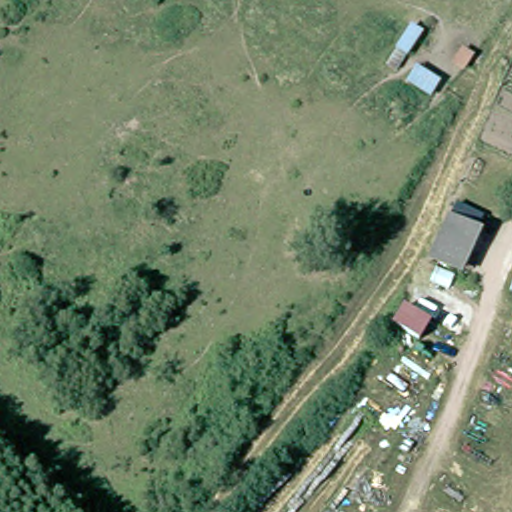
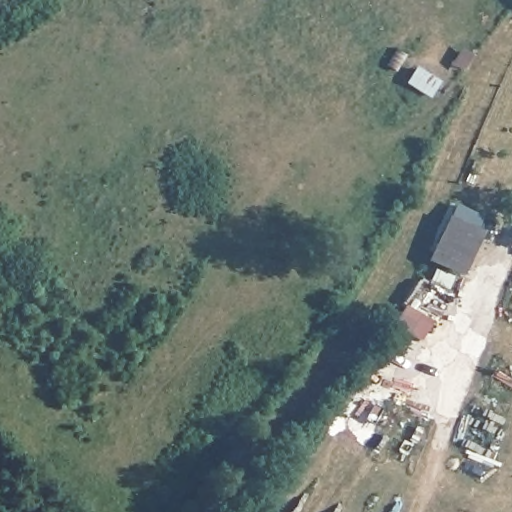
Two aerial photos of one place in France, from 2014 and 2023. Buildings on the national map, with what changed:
unchanged [(455,267),(431,255),(448,219),(472,230),(455,267)]

